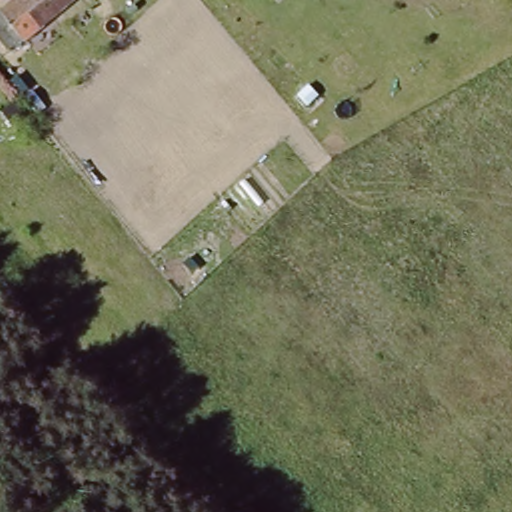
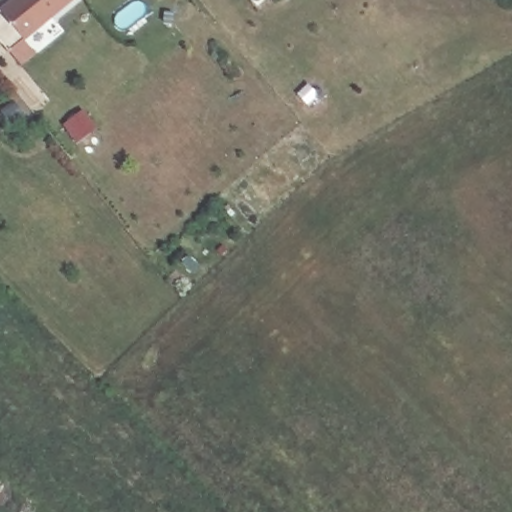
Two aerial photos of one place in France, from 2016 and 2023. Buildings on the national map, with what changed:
unchanged [(43,29),(14,53),(0,37),(0,13),(17,0),(80,0),(43,29)]

